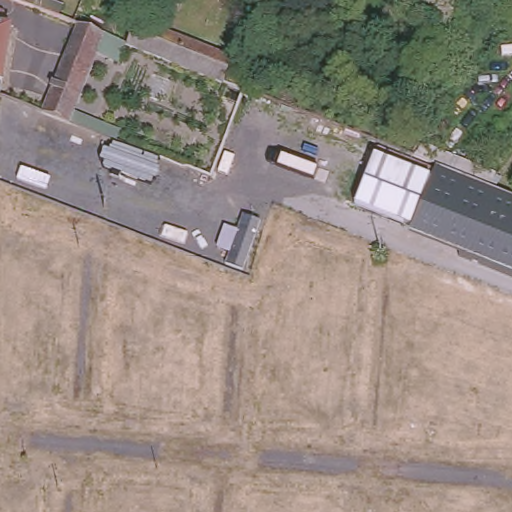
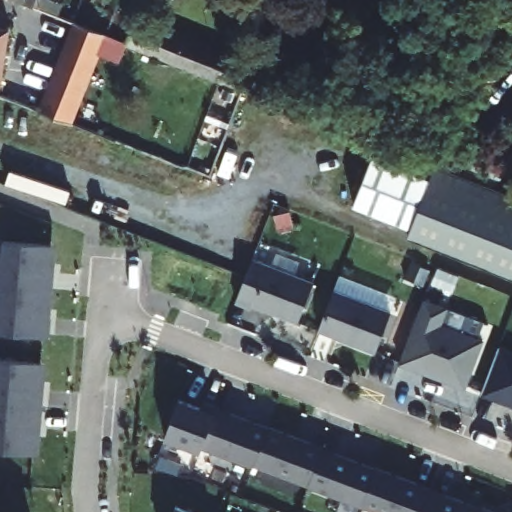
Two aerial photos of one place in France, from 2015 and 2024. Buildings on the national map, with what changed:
unchanged [(27,5),(14,0),(29,0),(27,5)]
unchanged [(139,19),(199,42),(229,54),(220,79),(124,41),(133,17),(139,19)]
unchanged [(101,32),(70,123),(68,122),(48,115),(44,113),(74,21),(101,32)]
unchanged [(3,24),(0,43),(0,24),(3,24)]
unchanged [(437,159),(512,191),(512,263),(409,224),(354,202),(377,150),(431,171),(437,159)]
new [(48,291),(0,288),(0,258),(2,258),(3,240),(51,245),(49,270),(53,270),(51,292),(48,291)]
new [(253,301),(251,306),(236,300),(236,299),(243,283),(253,258),(313,281),(298,320),(253,301)]
new [(48,291),(45,316),(49,316),(47,337),(0,333),(0,288),(48,291)]
new [(376,349),(320,329),(336,288),(390,311),(376,349)]
new [(400,363),(424,297),(447,306),(443,323),(484,338),(466,387),(400,363)]
new [(512,405),(482,393),(501,345),(512,350),(512,405)]
new [(0,405),(0,359),(41,362),(39,388),(43,388),(41,409),(0,405)]
new [(202,449),(166,435),(181,398),(202,406),(204,400),(218,406),(202,449)]
new [(41,409),(39,429),(35,429),(33,454),(0,452),(0,405),(41,409)]
new [(269,427),(255,465),(203,445),(218,407),(269,427)]
new [(309,483),(256,463),(270,426),(324,446),(309,483)]
new [(377,468),(363,504),(309,484),(323,448),(377,468)]
new [(422,512),(383,512),(363,504),(378,467),(431,488),(422,512)]
new [(481,512),(422,512),(431,489),(482,509),(481,512)]
new [(493,512),(481,512),(483,508),(493,512)]

